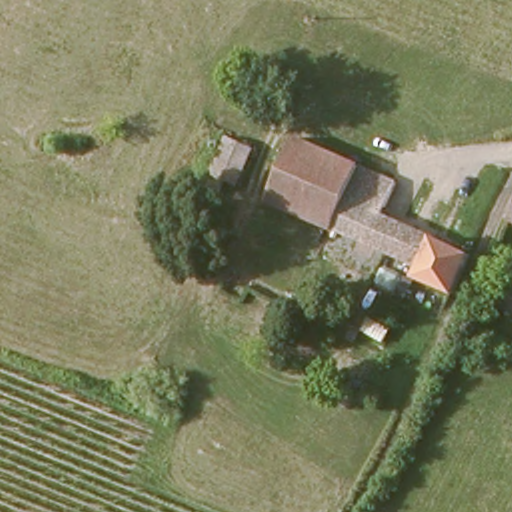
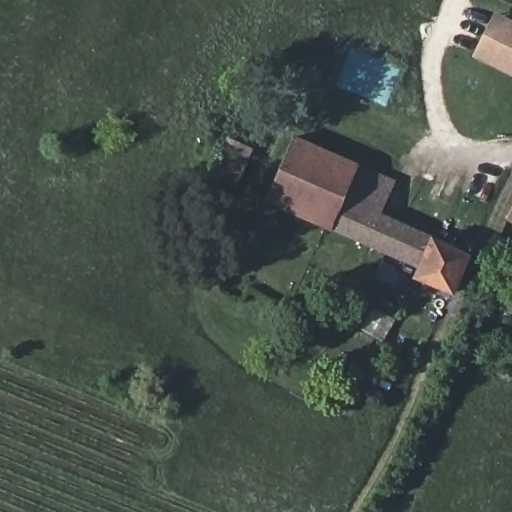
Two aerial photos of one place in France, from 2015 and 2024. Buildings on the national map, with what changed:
new [(495,11),(512,20),(512,76),(472,56),(495,11)]
unchanged [(255,146),(239,184),(230,180),(225,190),(210,183),(232,136),(255,146)]
unchanged [(326,150),(301,211),(272,198),(298,137),(326,150)]
unchanged [(326,150),(365,167),(351,197),(381,211),(390,215),(378,246),(371,243),(301,211),(326,150)]
unchanged [(381,211),(351,197),(365,167),(372,170),(395,181),(381,211)]
unchanged [(512,208),(512,217),(508,215),(512,208)]
unchanged [(460,292),(420,275),(423,267),(378,246),(390,215),(473,253),(460,292)]
unchanged [(512,308),(503,303),(512,286),(512,308)]

